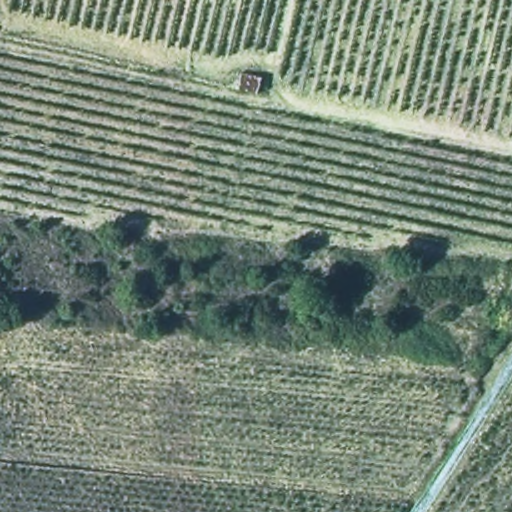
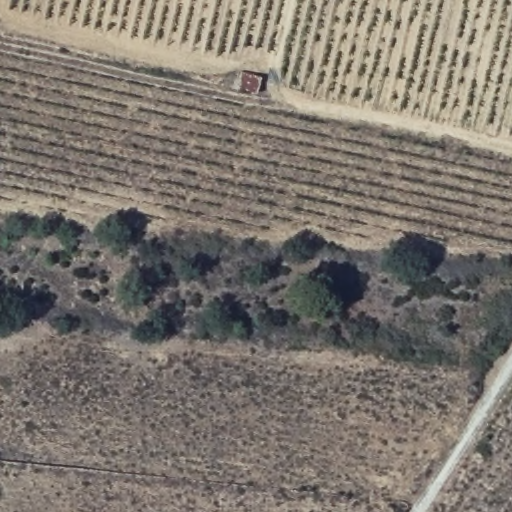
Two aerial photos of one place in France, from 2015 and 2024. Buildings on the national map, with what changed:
unchanged [(258,81),(255,92),(235,88),(237,77),(258,81)]

